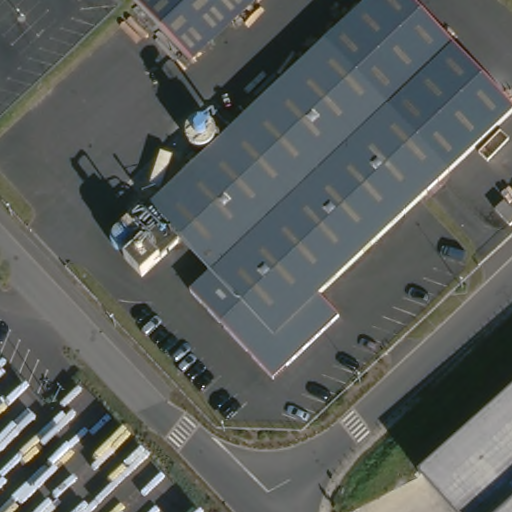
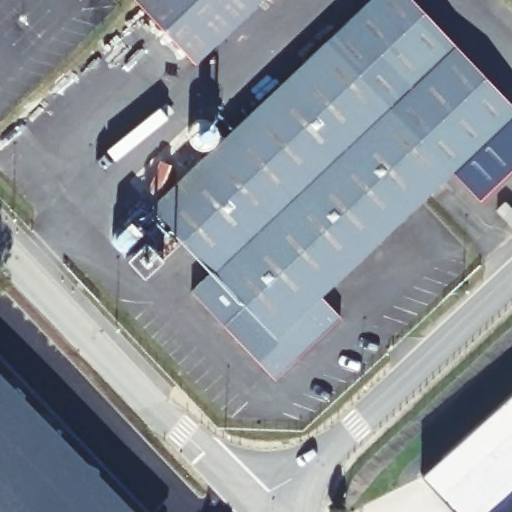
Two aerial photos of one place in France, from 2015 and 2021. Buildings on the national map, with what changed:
unchanged [(131,0),(260,0),(191,64),(183,55),(131,0)]
unchanged [(512,104),(512,117),(468,155),(345,27),(375,0),(417,0),(512,104)]
unchanged [(468,155),(308,293),(337,326),(269,387),(187,295),(207,277),(179,244),(139,279),(119,256),(157,222),(143,206),(345,27),(468,155)]
new [(468,155),(512,117),(512,169),(478,201),(451,170),(468,155)]
new [(0,512),(0,372),(136,512),(0,512)]
unchanged [(512,393),(512,512),(454,512),(421,475),(512,393)]

